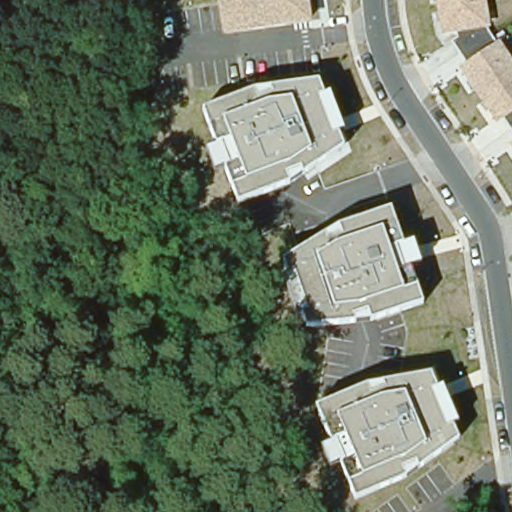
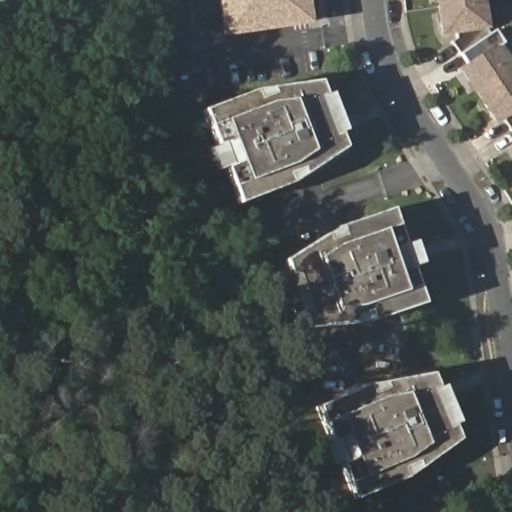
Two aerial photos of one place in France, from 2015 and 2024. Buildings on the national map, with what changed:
unchanged [(217,0),(310,0),(313,25),(223,36),(217,0)]
unchanged [(506,120),(496,124),(457,69),(466,61),(451,36),(442,38),(436,0),(487,0),(492,29),(512,62),(512,130),(506,120)]
unchanged [(292,184),(242,205),(225,168),(216,171),(208,149),(217,145),(203,109),(258,88),(321,81),(325,96),(333,94),(346,130),(338,133),(345,148),(292,184)]
unchanged [(510,144),(512,142),(512,147),(510,144)]
unchanged [(374,322),(309,330),(302,313),(295,314),(282,278),(287,275),(287,260),(339,225),(392,208),(405,244),(414,241),(422,265),(413,269),(425,305),(374,322)]
unchanged [(404,480),(354,499),(339,464),(329,469),(320,448),(330,443),(314,407),(366,384),(433,372),(438,388),(444,386),(459,421),(453,424),(461,440),(404,480)]

